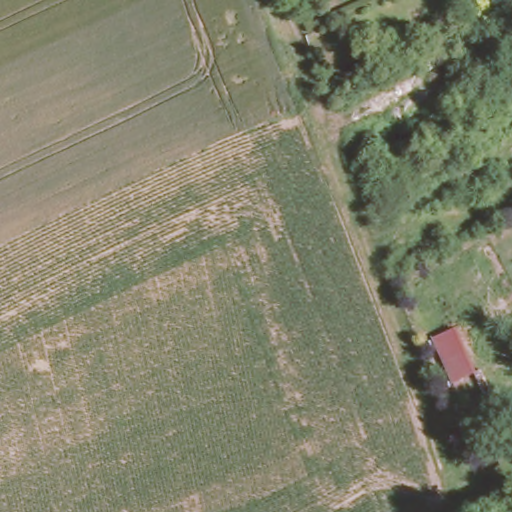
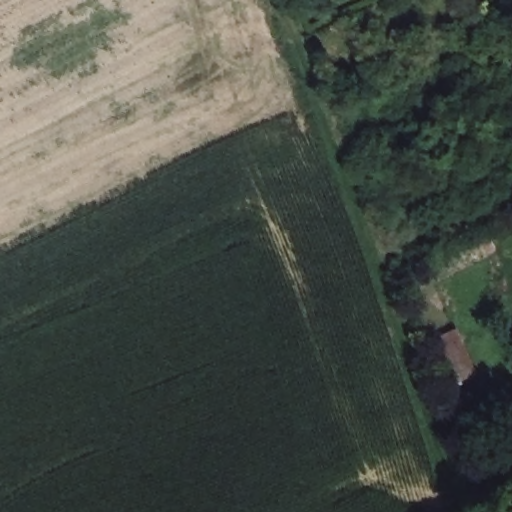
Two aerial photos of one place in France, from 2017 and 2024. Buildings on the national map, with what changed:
unchanged [(475,373),(453,383),(434,340),(456,330),(475,373)]

